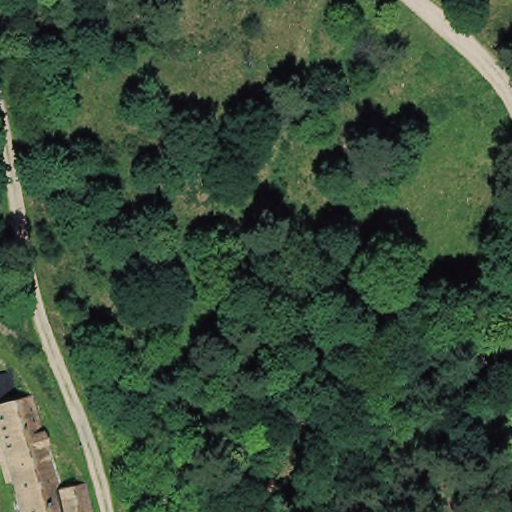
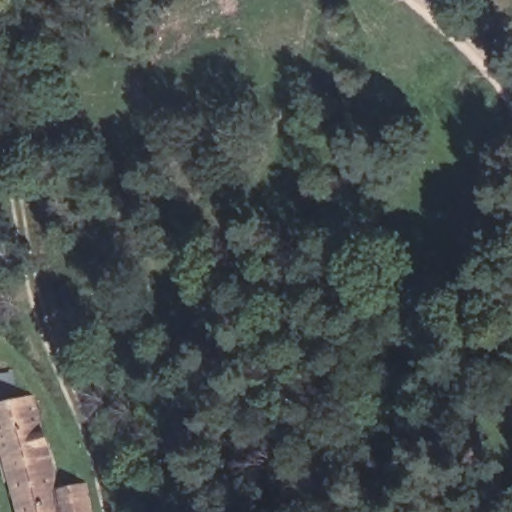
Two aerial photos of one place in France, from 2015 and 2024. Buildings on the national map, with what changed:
unchanged [(68,488),(93,483),(98,512),(22,512),(0,404),(39,395),(68,488)]

